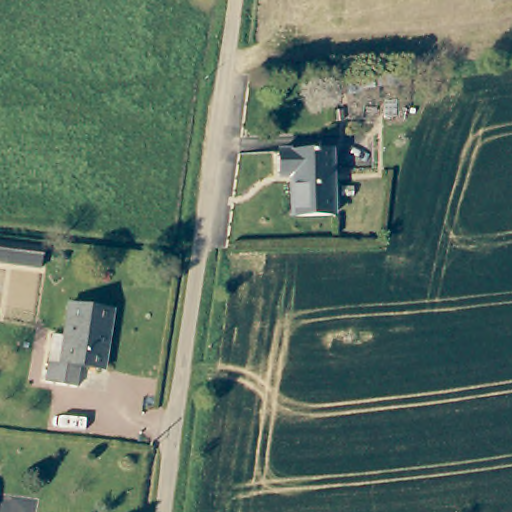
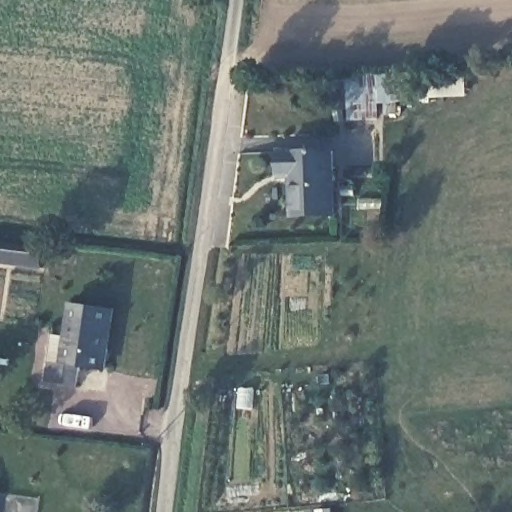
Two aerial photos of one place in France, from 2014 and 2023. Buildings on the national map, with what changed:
unchanged [(284,171),(270,172),(270,149),(338,147),(338,211),(285,212),(284,171)]
unchanged [(0,235),(44,240),(41,268),(0,262),(0,235)]
unchanged [(41,382),(45,362),(48,336),(61,338),(66,301),(110,308),(101,370),(76,366),(73,386),(41,382)]

